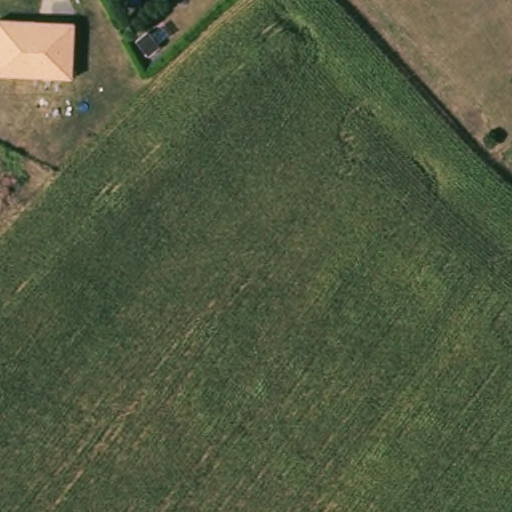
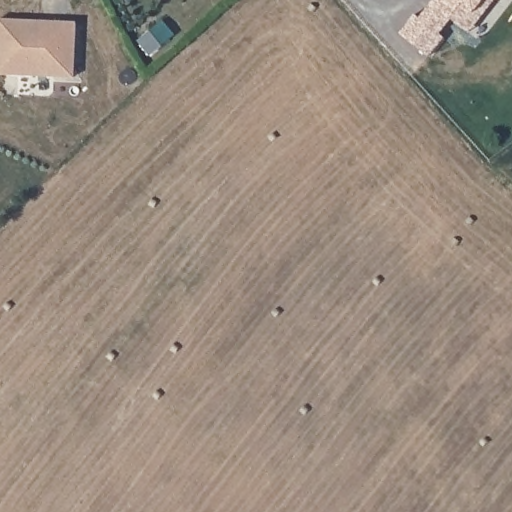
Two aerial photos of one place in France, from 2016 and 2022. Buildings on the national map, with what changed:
new [(419,17),(432,0),(492,0),(470,31),(453,18),(439,34),(444,39),(431,55),(399,34),(414,14),(419,17)]
unchanged [(0,77),(0,19),(77,23),(76,78),(0,77)]

